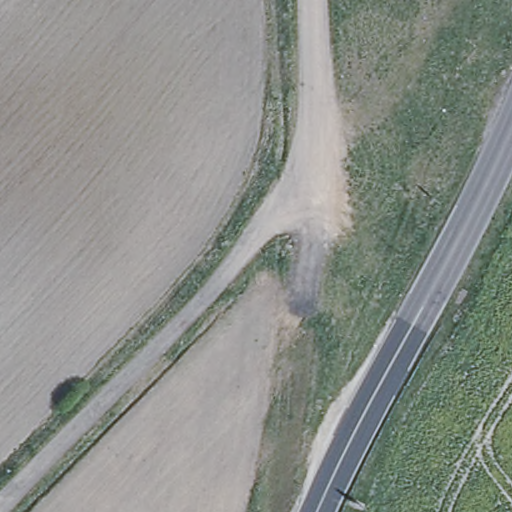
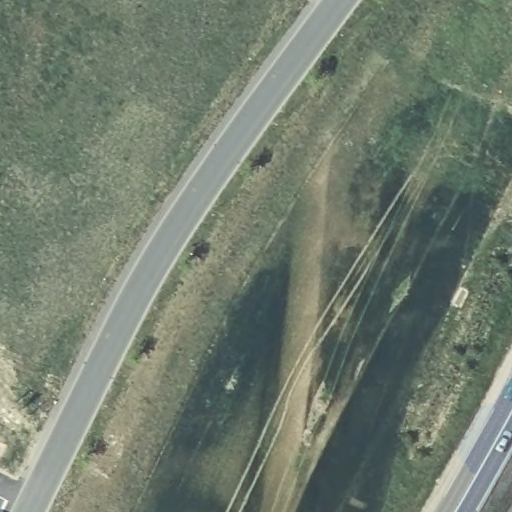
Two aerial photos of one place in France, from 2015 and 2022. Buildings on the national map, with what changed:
[]

